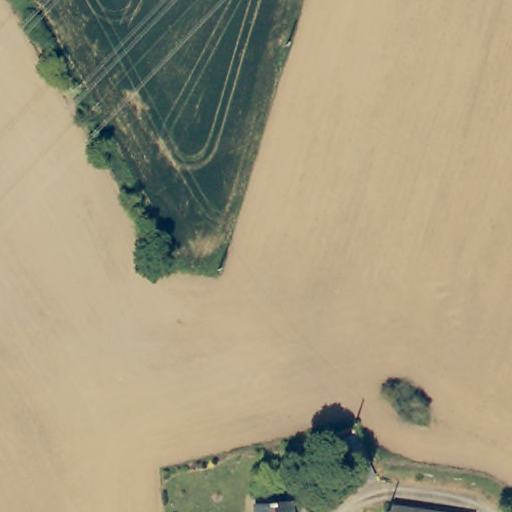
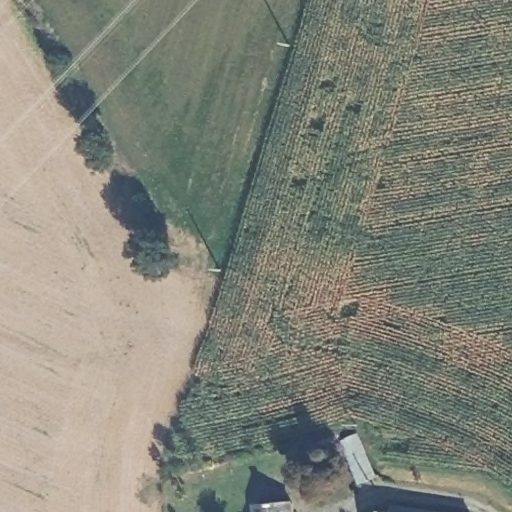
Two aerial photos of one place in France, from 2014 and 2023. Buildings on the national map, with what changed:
unchanged [(376,475),(360,482),(342,441),(359,435),(376,475)]
unchanged [(296,512),(257,512),(257,504),(295,502),(296,512)]
unchanged [(443,512),(392,512),(393,507),(443,512)]

